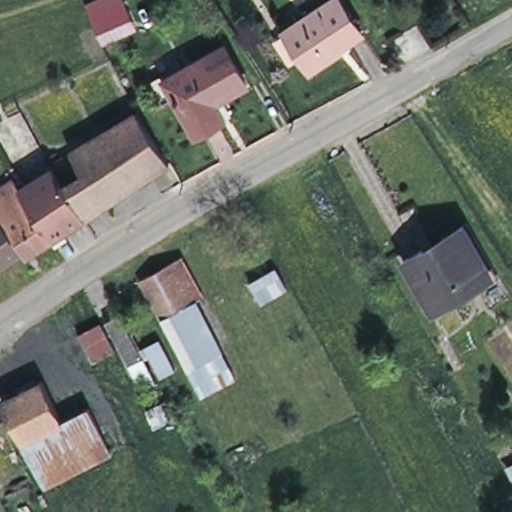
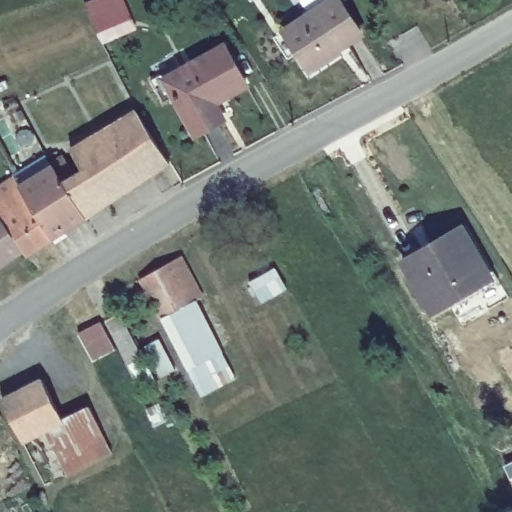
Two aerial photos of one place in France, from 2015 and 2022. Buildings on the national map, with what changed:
unchanged [(96,0),(120,0),(125,10),(92,24),(84,5),(96,0)]
unchanged [(360,35),(338,50),(340,53),(310,71),(284,32),(332,0),(337,0),(360,35)]
unchanged [(127,11),(134,29),(103,42),(94,25),(127,11)]
unchanged [(246,81),(215,99),(223,115),(195,131),(173,92),(162,98),(150,75),(161,69),(164,75),(225,41),(246,81)]
unchanged [(169,158),(115,192),(83,138),(137,107),(169,158)]
unchanged [(50,157),(62,150),(75,171),(83,167),(70,146),(83,138),(115,192),(83,212),(53,161),(50,157)]
unchanged [(53,161),(83,212),(51,233),(18,181),(53,161)]
unchanged [(14,174),(18,181),(51,233),(25,250),(22,245),(0,213),(0,182),(14,174)]
unchanged [(22,245),(0,260),(0,213),(22,245)]
unchanged [(492,278),(432,312),(403,261),(462,227),(492,278)]
unchanged [(197,300),(162,319),(150,296),(140,279),(181,257),(190,275),(202,297),(197,300)]
unchanged [(257,306),(243,284),(275,267),(287,288),(257,306)]
unchanged [(197,300),(238,376),(202,395),(162,319),(197,300)]
unchanged [(156,381),(142,388),(105,320),(120,313),(156,381)]
unchanged [(102,322),(115,349),(92,361),(78,334),(102,322)]
unchanged [(175,369),(160,377),(145,346),(160,338),(175,369)]
unchanged [(42,375),(62,415),(88,402),(111,447),(45,480),(2,395),(42,375)]
unchanged [(512,464),(512,479),(506,467),(512,464)]

